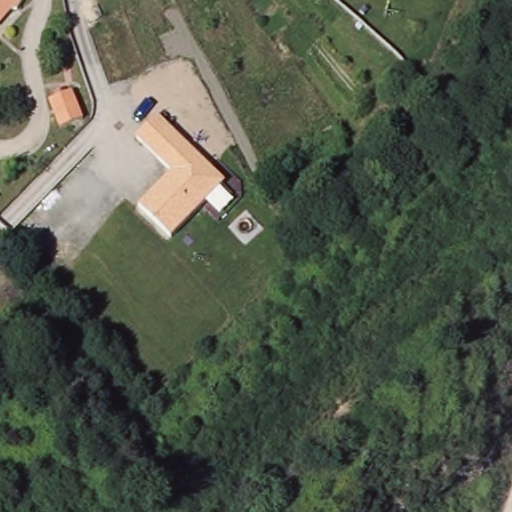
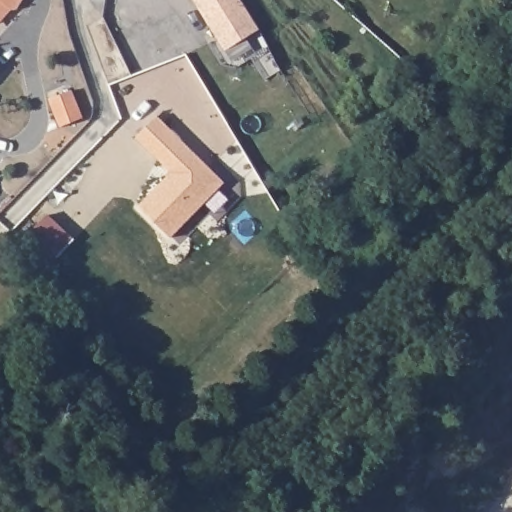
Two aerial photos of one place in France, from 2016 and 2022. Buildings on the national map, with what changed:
unchanged [(10,15),(4,10),(0,14),(0,0),(27,0),(17,15),(10,15)]
new [(225,49),(195,0),(243,0),(260,27),(225,49)]
unchanged [(83,119),(60,127),(49,100),(72,90),(83,119)]
unchanged [(171,237),(140,207),(172,174),(136,139),(157,116),(225,182),(171,237)]

